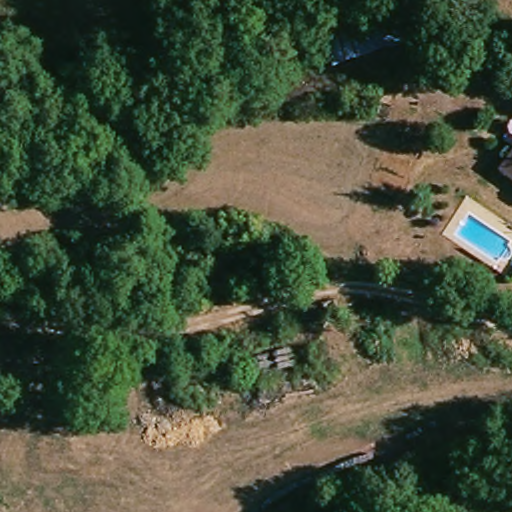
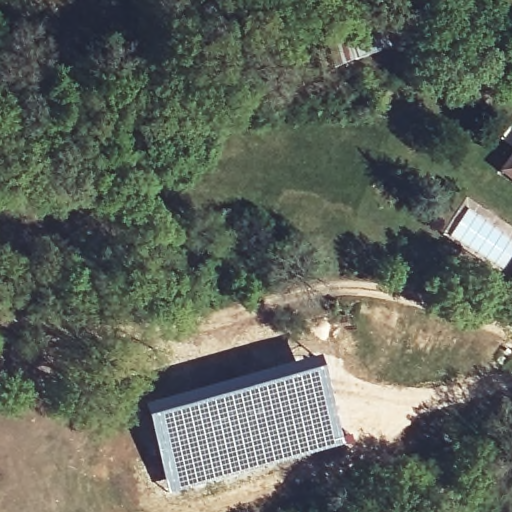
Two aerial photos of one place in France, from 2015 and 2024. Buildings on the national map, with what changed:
unchanged [(388,24),(396,48),(334,68),(328,45),(388,24)]
unchanged [(339,312),(324,316),(323,304),(338,301),(339,312)]
new [(173,396),(174,399),(169,401),(170,404),(211,395),(319,365),(326,397),(336,420),(341,445),(255,471),(166,494),(141,403),(173,396)]
unchanged [(484,501),(495,507),(492,512),(479,512),(478,511),(484,501)]

